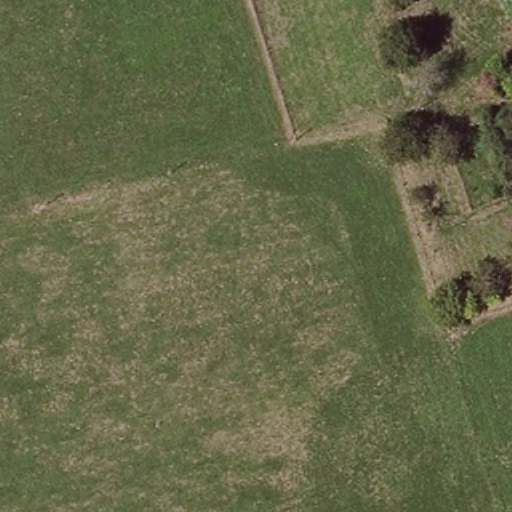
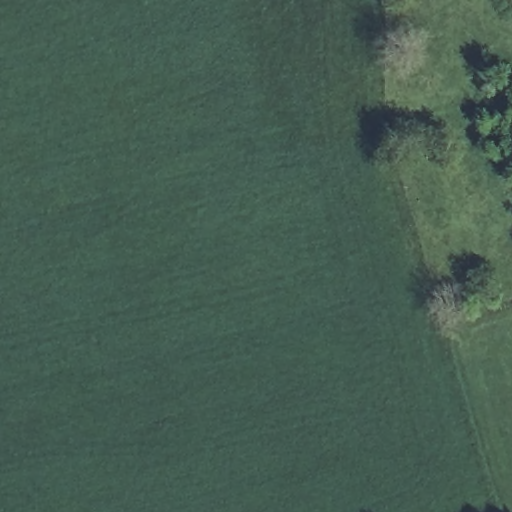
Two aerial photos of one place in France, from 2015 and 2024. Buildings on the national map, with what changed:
[]

